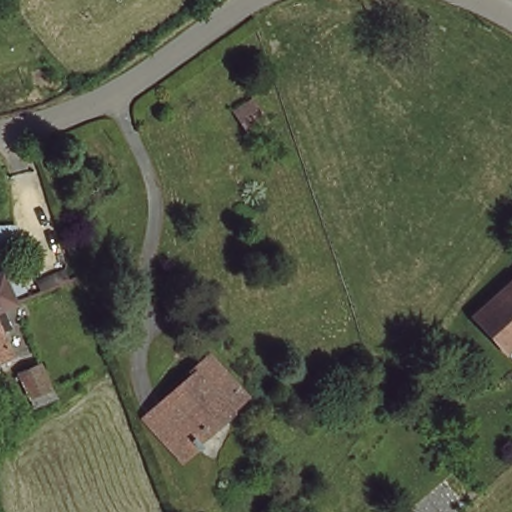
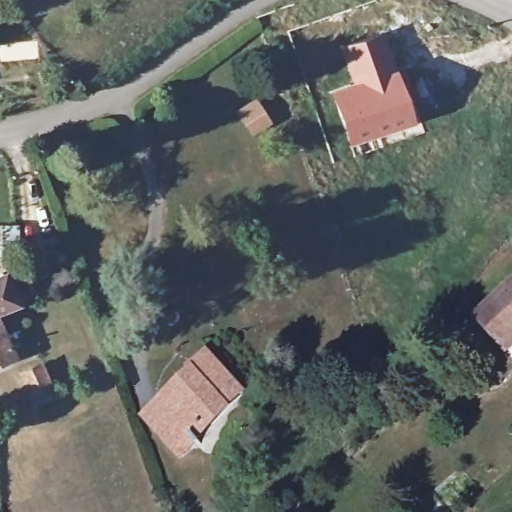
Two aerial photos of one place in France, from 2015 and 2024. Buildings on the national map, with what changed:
new [(332,93),(355,84),(342,47),(376,36),(388,74),(392,73),(408,118),(348,140),(332,93)]
unchanged [(230,105),(248,90),(273,120),(249,136),(230,105)]
unchanged [(13,296),(1,302),(0,303),(0,270),(0,269),(13,296)]
unchanged [(471,311),(512,273),(512,358),(471,311)]
unchanged [(10,322),(0,328),(0,303),(1,302),(10,322)]
unchanged [(0,356),(0,334),(8,351),(0,356)]
unchanged [(238,391),(196,429),(203,438),(197,444),(191,439),(178,452),(146,413),(193,371),(188,366),(204,351),(238,391)]
unchanged [(51,395),(30,405),(15,372),(36,362),(51,395)]

